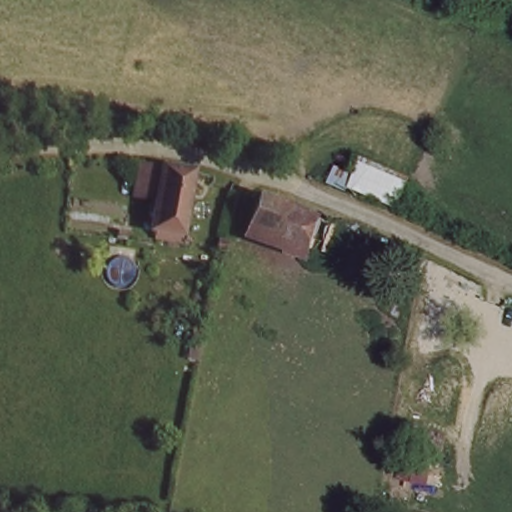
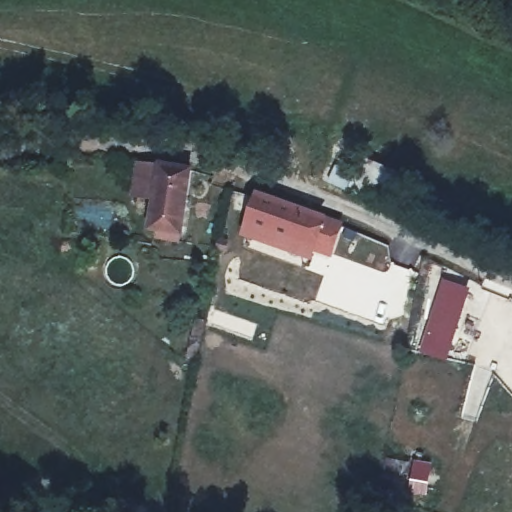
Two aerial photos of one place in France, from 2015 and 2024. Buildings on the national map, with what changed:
unchanged [(157,199),(136,196),(142,163),(164,167),(193,172),(181,237),(150,232),(153,218),(157,199)]
unchanged [(410,182),(401,209),(353,188),(332,182),(336,171),(358,176),(362,163),(410,182)]
unchanged [(330,217),(318,248),(244,220),(256,189),(330,217)]
new [(447,362),(417,352),(443,279),(470,289),(447,362)]

